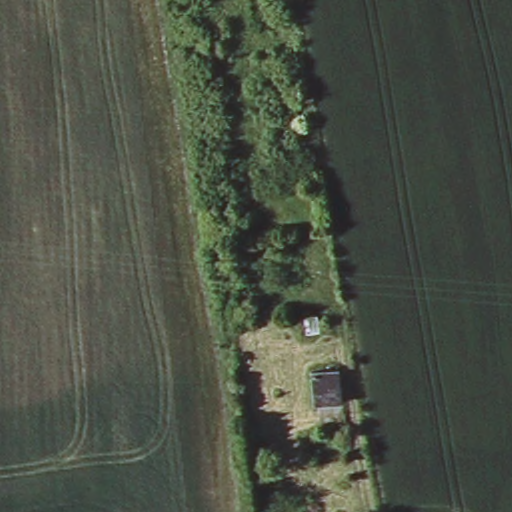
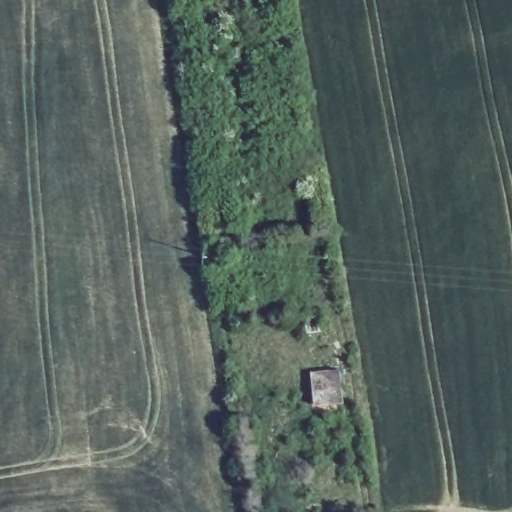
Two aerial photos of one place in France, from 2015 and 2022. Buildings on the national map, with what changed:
unchanged [(312,367),(329,365),(333,401),(314,402),(312,367)]

